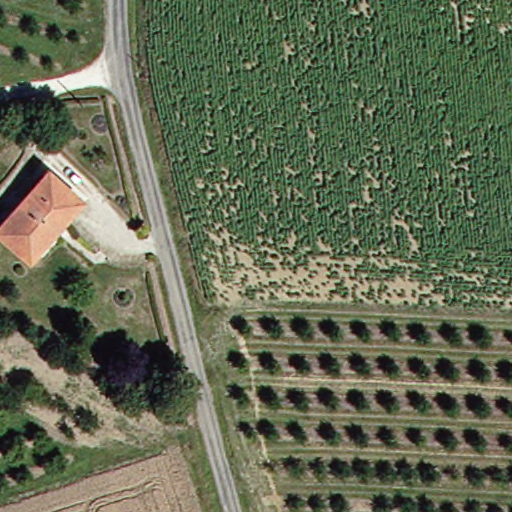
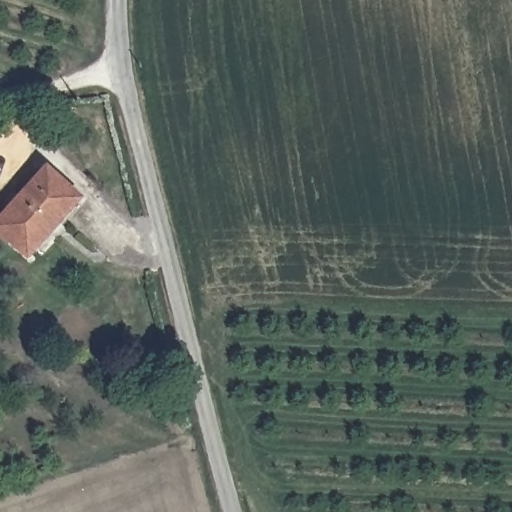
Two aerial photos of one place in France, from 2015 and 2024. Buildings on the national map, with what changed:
unchanged [(77,209),(19,259),(0,238),(0,213),(47,175),(77,209)]

